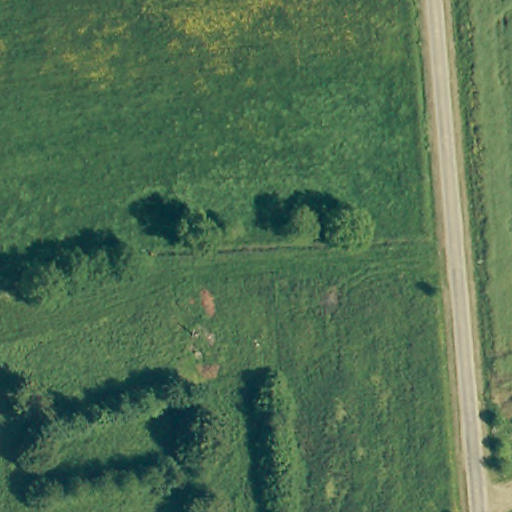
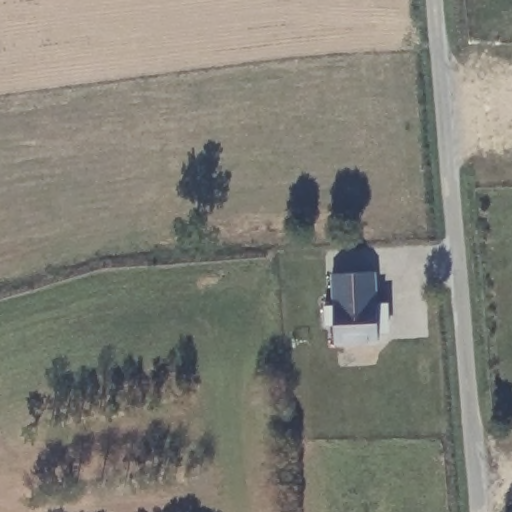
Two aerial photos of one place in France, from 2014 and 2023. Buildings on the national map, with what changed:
new [(377,302),(391,302),(390,336),(379,337),(380,342),(334,342),(330,325),(325,324),(325,304),(335,304),(333,273),(377,271),(377,302)]

